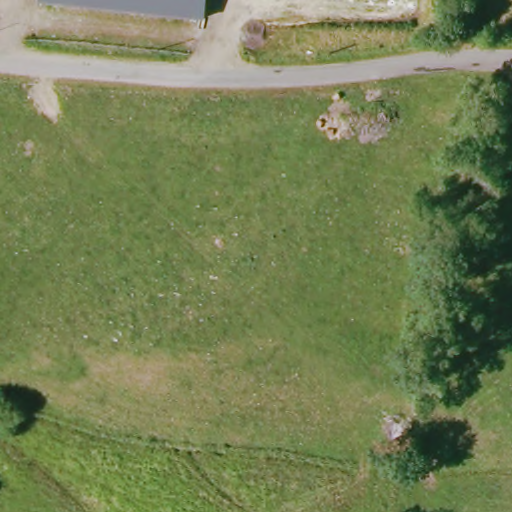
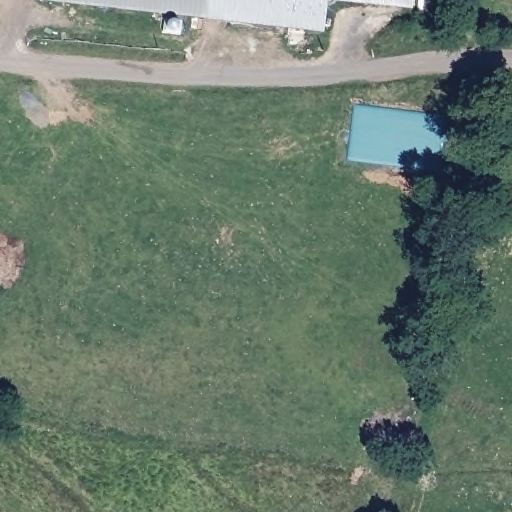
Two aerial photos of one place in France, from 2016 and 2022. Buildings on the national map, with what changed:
unchanged [(205,0),(203,18),(37,0),(205,0)]
new [(203,18),(205,0),(329,0),(326,30),(203,18)]
new [(343,0),(418,0),(418,8),(343,0)]

